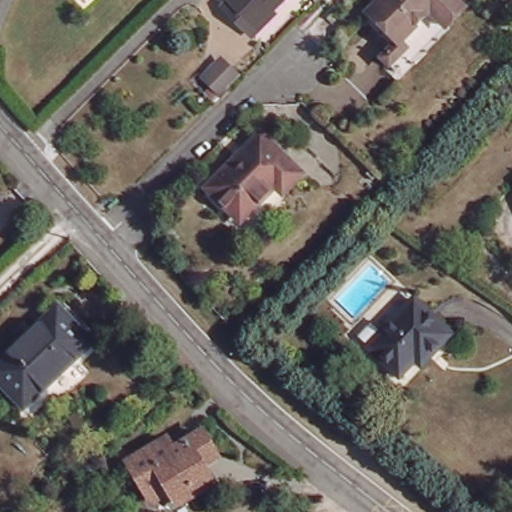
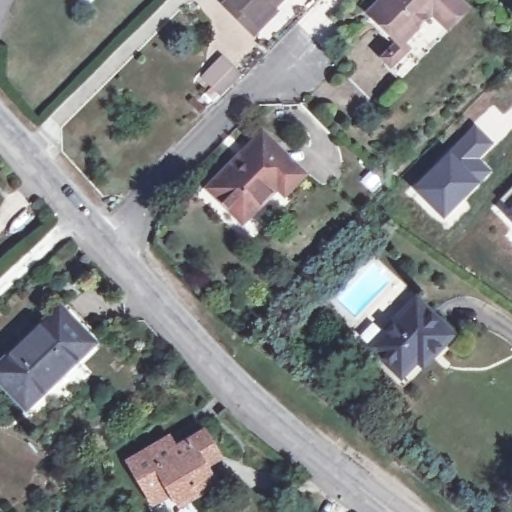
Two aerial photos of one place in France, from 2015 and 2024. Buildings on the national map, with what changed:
unchanged [(247,32),(222,6),(229,0),(279,0),(271,8),(275,12),(251,36),(247,32)]
unchanged [(391,59),(391,57),(392,54),(397,49),(367,21),(373,15),(387,0),(459,0),(468,9),(452,26),(455,28),(408,78),(396,66),(392,63),(391,59)]
unchanged [(235,76),(217,94),(202,80),(220,62),(235,76)]
new [(475,123),(495,144),(480,159),(492,171),(443,219),(411,187),(475,123)]
unchanged [(300,175),(282,194),(274,187),(240,220),(207,188),(259,135),(300,175)]
new [(512,204),(512,221),(503,212),(512,204)]
unchanged [(409,360),(392,377),(362,348),(408,300),(445,333),(428,351),(414,365),(409,360)]
unchanged [(25,413),(0,388),(0,368),(58,312),(92,347),(25,413)]
unchanged [(180,506),(174,497),(155,507),(152,502),(133,467),(172,445),(178,456),(208,439),(221,462),(206,471),(217,490),(200,500),(182,510),(180,506)]

